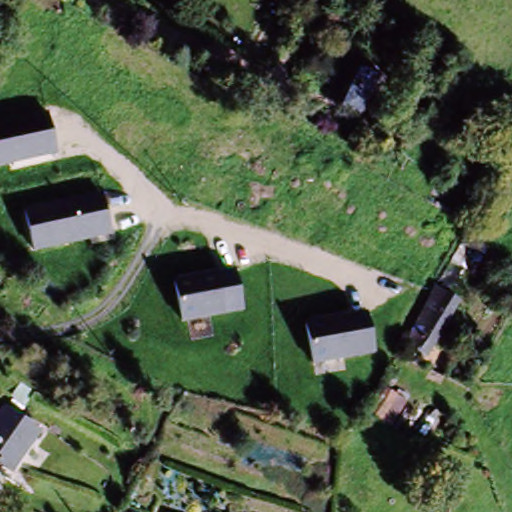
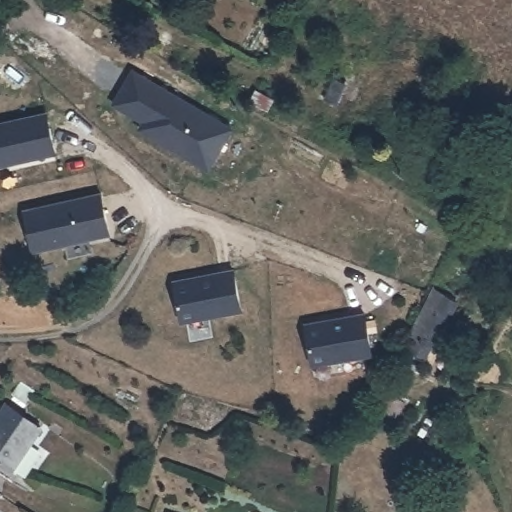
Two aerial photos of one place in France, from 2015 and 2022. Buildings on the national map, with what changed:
unchanged [(339,102),(331,97),(338,84),(347,68),(367,68),(381,89),(376,100),(363,126),(355,122),(333,111),(339,102)]
new [(235,127),(210,170),(141,130),(146,123),(115,105),(135,71),(235,127)]
unchanged [(56,156),(0,168),(0,123),(48,114),(56,156)]
unchanged [(21,208),(103,192),(111,236),(31,253),(21,208)]
unchanged [(172,280),(235,270),(242,312),(180,325),(172,280)]
unchanged [(425,361),(400,344),(435,287),(461,303),(425,361)]
unchanged [(311,368),(303,323),(367,314),(375,357),(311,368)]
unchanged [(369,413),(383,388),(406,403),(390,427),(369,413)]
unchanged [(44,427),(12,471),(0,463),(0,412),(6,402),(44,427)]

